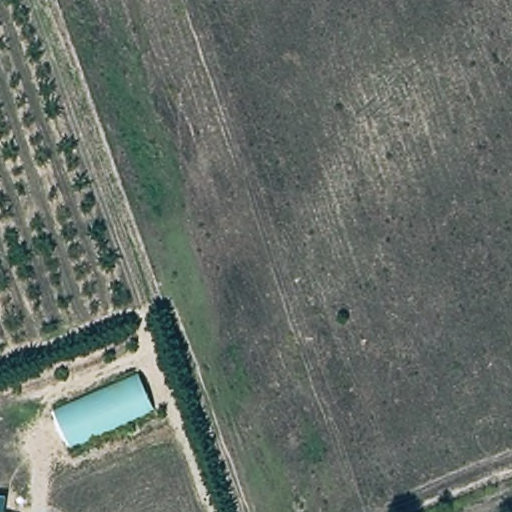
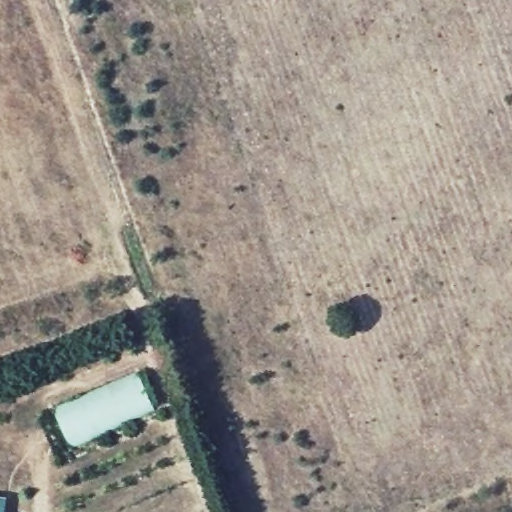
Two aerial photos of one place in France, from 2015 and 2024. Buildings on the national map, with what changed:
unchanged [(139,374),(155,412),(70,447),(54,410),(139,374)]
unchanged [(10,497),(9,512),(0,512),(0,496),(10,497)]

